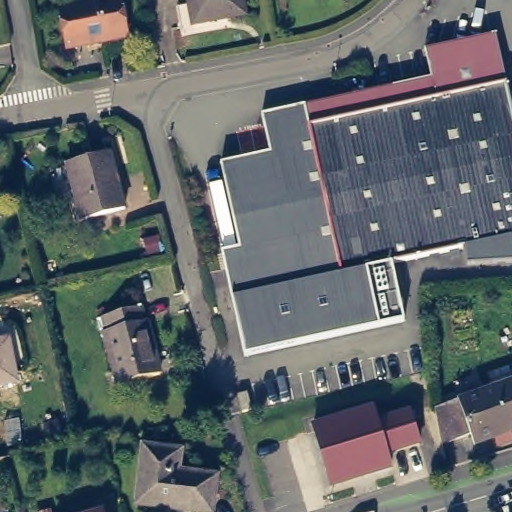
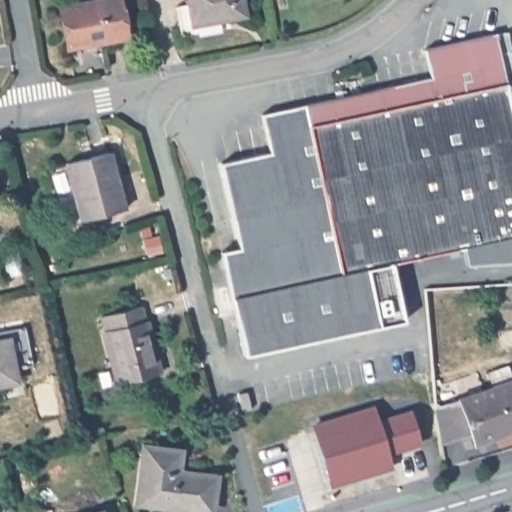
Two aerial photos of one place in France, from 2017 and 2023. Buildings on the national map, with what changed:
unchanged [(128,25),(70,36),(63,0),(123,0),(128,25)]
unchanged [(241,12),(176,27),(171,7),(186,5),(185,0),(238,0),(241,12)]
unchanged [(512,108),(512,264),(467,267),(463,250),(392,265),(404,322),(244,357),(221,254),(238,251),(220,166),(269,155),(261,117),(304,107),(431,80),(425,51),(496,35),(512,108)]
unchanged [(106,147),(121,206),(80,216),(65,158),(106,147)]
unchanged [(139,298),(156,365),(139,369),(141,375),(131,377),(131,372),(116,376),(98,308),(139,298)]
unchanged [(11,375),(0,376),(0,334),(5,333),(11,375)]
unchanged [(493,369),(512,363),(512,427),(478,438),(475,430),(443,440),(437,405),(498,384),(493,369)]
unchanged [(248,401),(256,398),(261,416),(252,418),(248,401)]
unchanged [(348,456),(353,474),(343,477),(341,471),(322,477),(308,425),(398,399),(410,440),(392,445),(391,442),(371,448),(356,453),(348,456)]
unchanged [(171,478),(209,482),(207,512),(169,512),(161,511),(161,505),(136,502),(141,453),(172,457),(171,478)]

